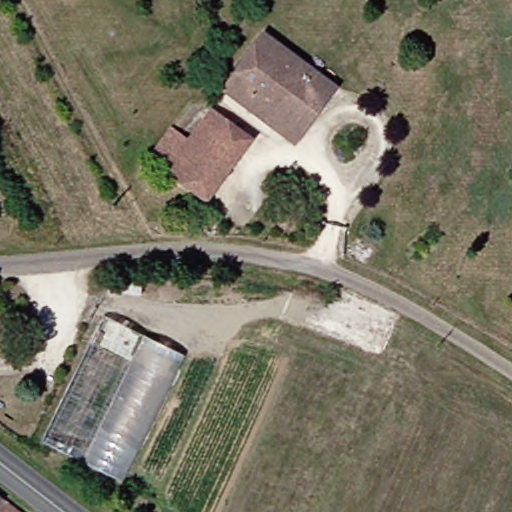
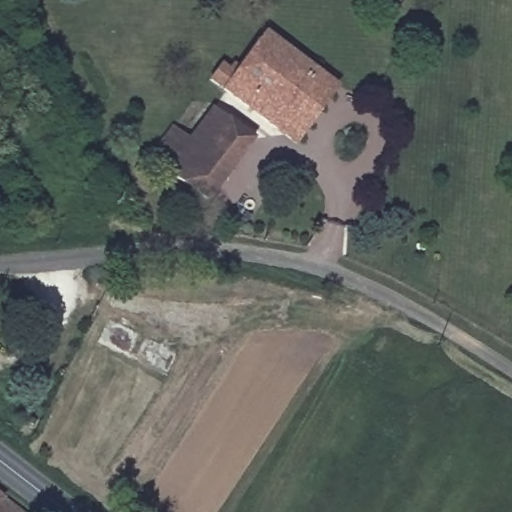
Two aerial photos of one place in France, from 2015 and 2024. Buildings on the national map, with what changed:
unchanged [(282,141),(223,95),(230,85),(218,74),(234,53),(246,60),(268,28),(328,74),(282,141)]
unchanged [(346,88),(295,151),(282,141),(328,74),(346,88)]
unchanged [(164,172),(212,106),(258,142),(211,208),(164,172)]
demolished [(108,318),(187,357),(124,483),(44,442),(108,318)]
unchanged [(0,512),(0,480),(40,512),(0,512)]

